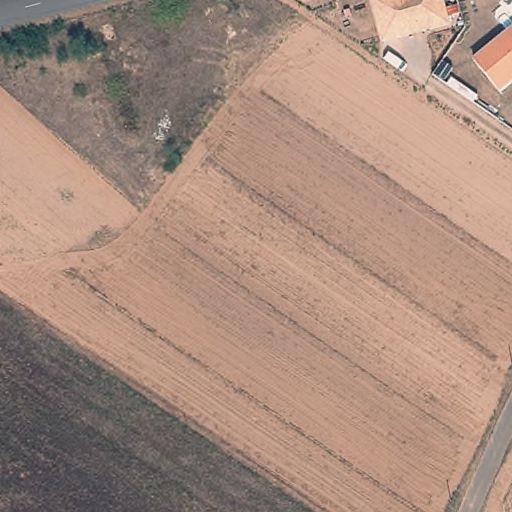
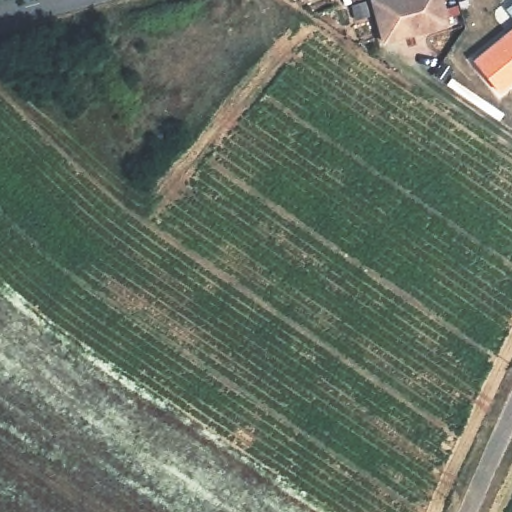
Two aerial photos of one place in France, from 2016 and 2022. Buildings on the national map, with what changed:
unchanged [(371,0),(441,0),(447,25),(382,41),(371,0)]
unchanged [(474,61),(512,29),(512,82),(499,93),(474,61)]

